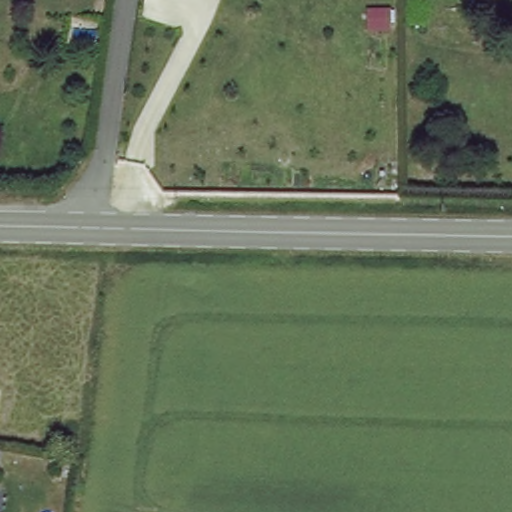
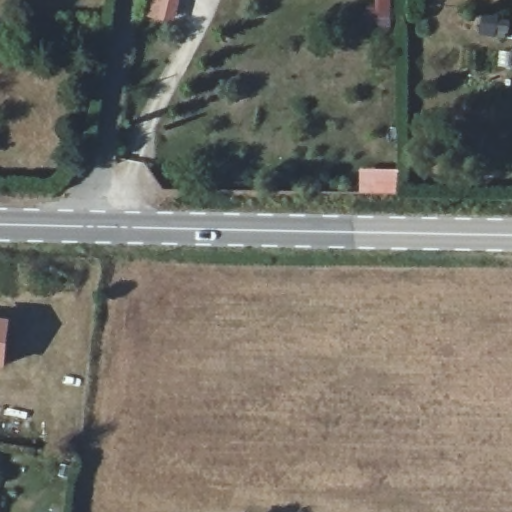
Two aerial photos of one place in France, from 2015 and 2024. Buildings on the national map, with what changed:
new [(10,318),(5,367),(0,367),(0,316),(10,318)]

